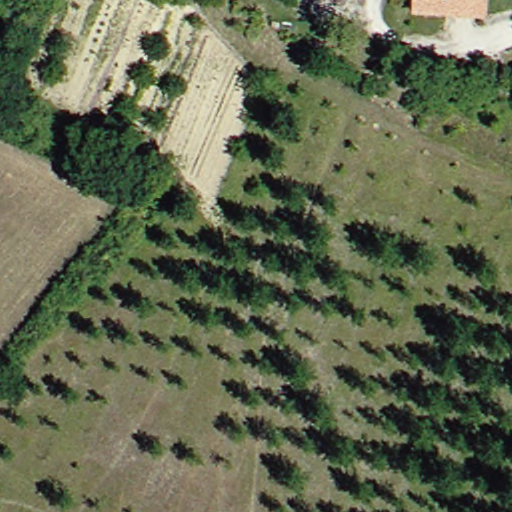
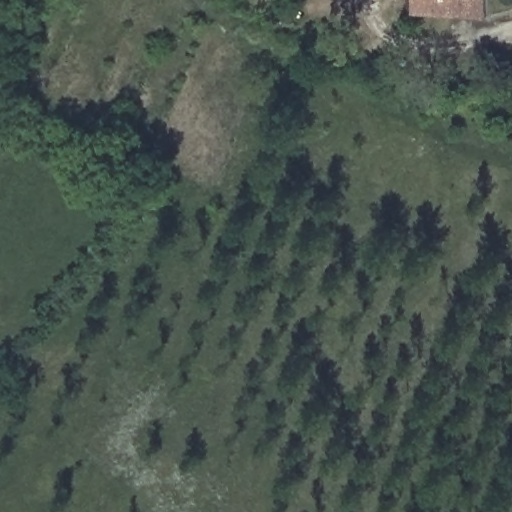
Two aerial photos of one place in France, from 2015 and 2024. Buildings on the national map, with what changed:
unchanged [(493,19),(431,17),(429,8),(416,7),(416,0),(493,0),(493,19)]

